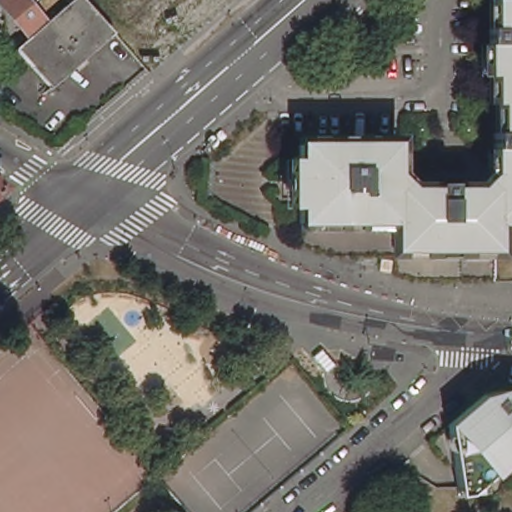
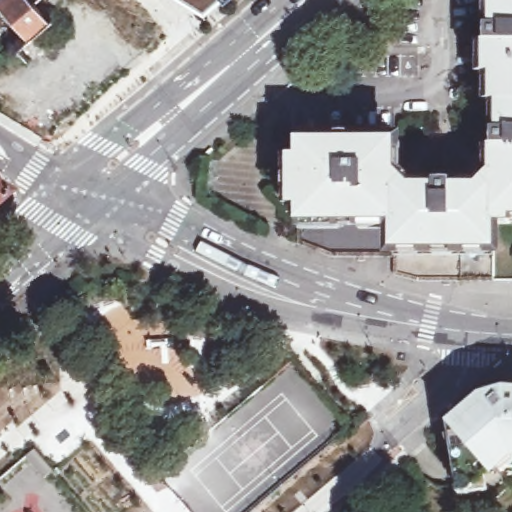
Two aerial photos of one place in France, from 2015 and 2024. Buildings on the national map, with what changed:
unchanged [(42,0),(39,2),(55,20),(50,25),(27,44),(22,37),(32,29),(7,0),(42,0)]
demolished [(58,88),(22,48),(27,44),(50,25),(55,20),(77,1),(75,0),(92,0),(100,8),(100,9),(114,24),(120,32),(58,88)]
new [(199,0),(207,0),(204,3),(199,0)]
unchanged [(401,193),(401,189),(405,184),(409,180),(417,189),(440,189),(440,183),(458,183),(459,189),(485,189),(499,174),(498,132),(504,131),(504,104),(497,103),(497,76),(492,76),(492,27),(497,26),(497,0),(512,0),(512,226),(500,226),(500,249),(463,249),(400,249),(401,196),(401,193)]
unchanged [(305,224),(305,207),(300,207),(300,158),(305,158),(305,146),(305,144),(306,144),(306,140),(310,140),(310,144),(327,144),(327,140),(332,140),(332,141),(333,144),(355,143),(392,143),(392,140),(395,140),(396,143),(400,143),(400,172),(409,180),(405,184),(401,189),(401,193),(401,196),(400,249),(399,249),(398,222),(305,224)]
unchanged [(7,190),(0,196),(0,179),(12,186),(7,190)]
unchanged [(500,226),(512,226),(512,283),(496,283),(500,249),(500,226)]
unchanged [(494,502),(486,490),(460,494),(450,424),(456,419),(474,403),(485,394),(492,388),(497,389),(505,389),(512,390),(512,487),(494,502)]

